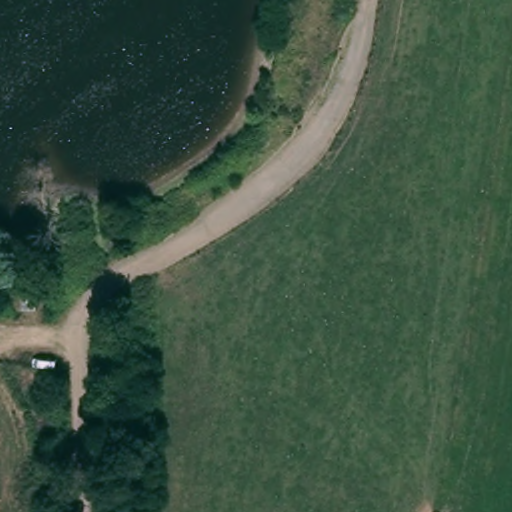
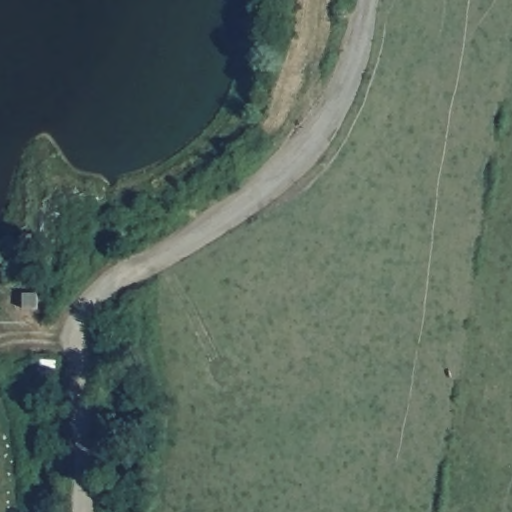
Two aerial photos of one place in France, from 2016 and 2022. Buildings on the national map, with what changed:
unchanged [(39,293),(39,308),(23,309),(23,293),(39,293)]

